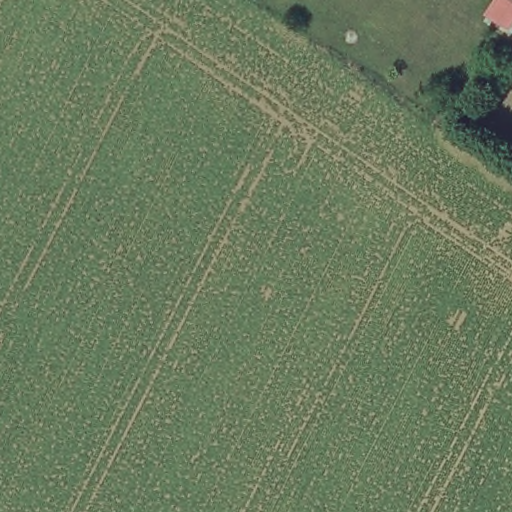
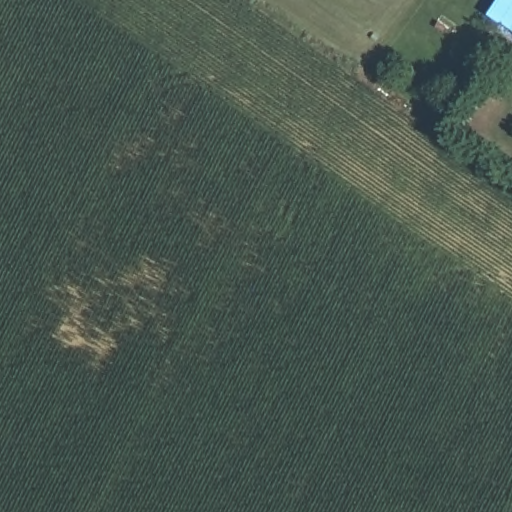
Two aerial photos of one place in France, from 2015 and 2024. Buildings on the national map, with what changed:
unchanged [(512,34),(490,19),(502,0),(512,0),(512,34)]

